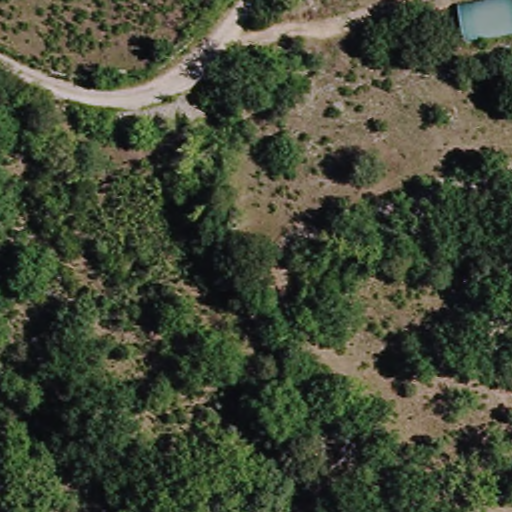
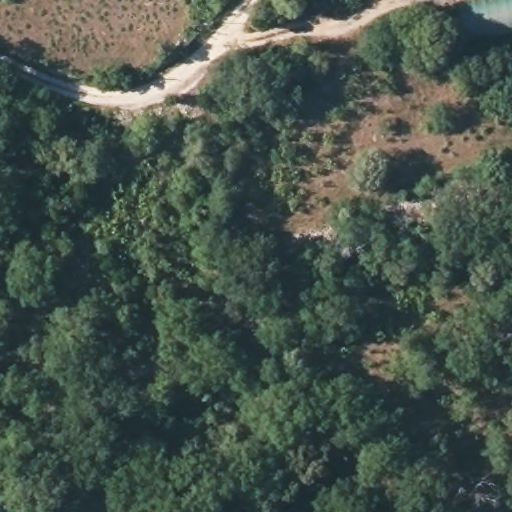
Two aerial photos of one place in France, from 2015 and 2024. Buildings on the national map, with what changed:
unchanged [(494,0),(512,0),(512,34),(464,42),(458,6),(494,0)]

